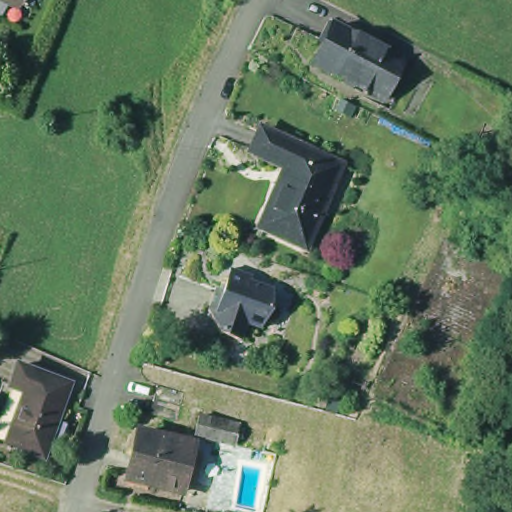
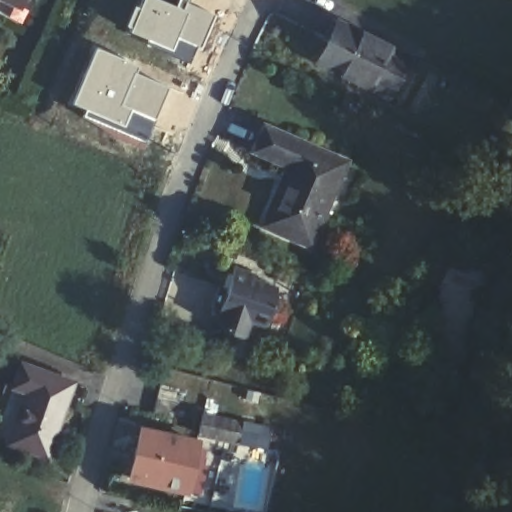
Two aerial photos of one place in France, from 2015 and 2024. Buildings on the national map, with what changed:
unchanged [(5,5),(0,3),(0,0),(8,0),(5,5)]
unchanged [(14,29),(0,23),(0,3),(5,5),(8,0),(29,0),(14,29)]
new [(138,0),(163,0),(173,4),(174,0),(192,0),(216,12),(201,49),(198,47),(190,63),(124,30),(138,0)]
unchanged [(394,96),(324,61),(342,22),(413,57),(394,96)]
new [(93,44),(138,63),(135,69),(171,86),(146,143),(80,115),(83,109),(68,102),(93,44)]
unchanged [(324,209),(331,213),(315,249),(269,229),(291,180),(298,183),(303,172),(261,153),(271,131),(344,163),(324,209)]
unchanged [(254,277),(277,286),(276,305),(264,324),(251,320),(246,334),(225,327),(214,305),(221,284),(227,286),(234,265),(241,268),(256,273),(254,277)]
unchanged [(51,454),(15,442),(32,388),(18,383),(24,363),(76,381),(51,454)]
unchanged [(156,411),(163,382),(191,389),(183,418),(156,411)]
unchanged [(196,434),(202,414),(249,427),(240,457),(201,447),(184,498),(124,486),(140,420),(196,434)]

